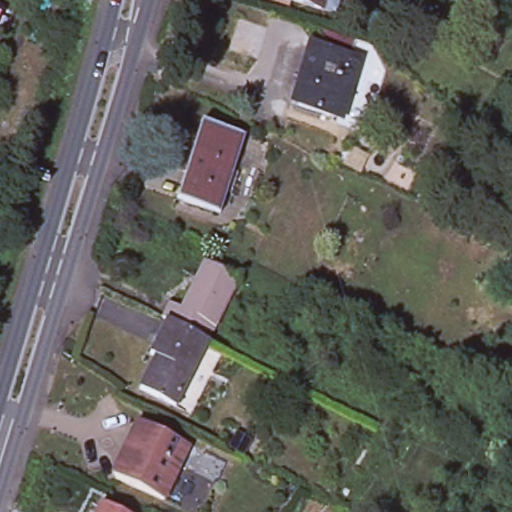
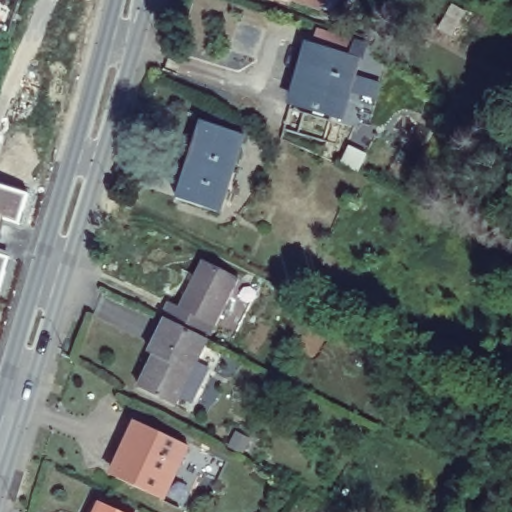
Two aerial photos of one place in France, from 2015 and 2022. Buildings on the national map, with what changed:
unchanged [(321,4),(320,7),(297,0),(337,0),(334,8),(321,4)]
unchanged [(466,13),(452,37),(440,29),(454,5),(466,13)]
unchanged [(359,61),(342,117),(292,103),(308,46),(359,61)]
unchanged [(240,132),(213,207),(177,195),(203,119),(240,132)]
new [(20,224),(5,220),(0,236),(0,185),(30,194),(20,224)]
new [(0,288),(0,254),(10,257),(0,288)]
unchanged [(161,312),(168,297),(180,303),(203,257),(238,274),(207,335),(167,314),(161,312)]
unchanged [(175,401),(140,382),(155,351),(150,348),(167,314),(207,335),(175,401)]
unchanged [(189,452),(163,505),(117,484),(114,475),(121,461),(123,463),(130,448),(127,446),(136,427),(189,452)]
unchanged [(105,512),(99,512),(100,509),(105,512)]

